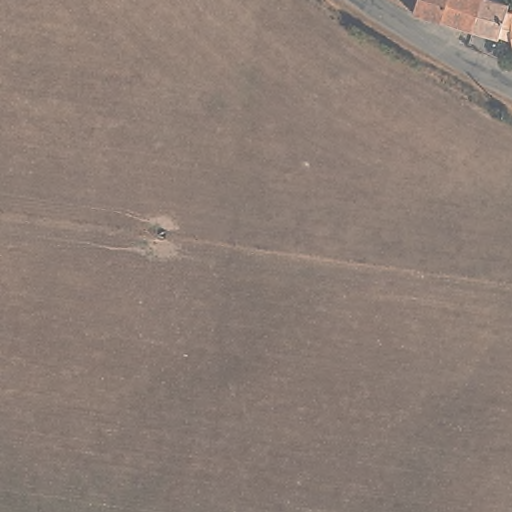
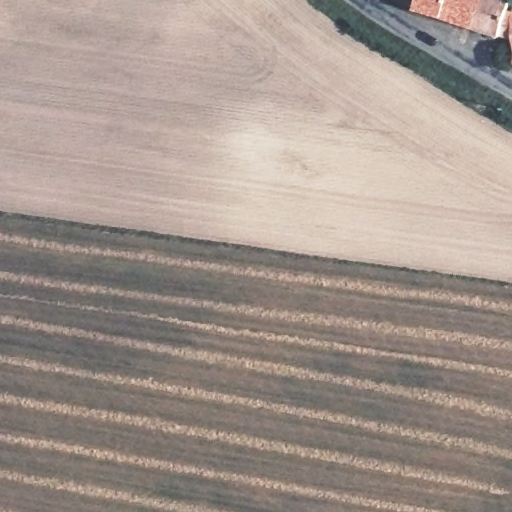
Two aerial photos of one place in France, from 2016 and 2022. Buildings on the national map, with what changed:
unchanged [(411,12),(394,4),(389,0),(415,0),(411,12)]
unchanged [(468,33),(416,18),(411,12),(415,0),(479,0),(468,33)]
unchanged [(479,0),(491,0),(506,4),(506,11),(512,11),(512,42),(468,33),(479,0)]

